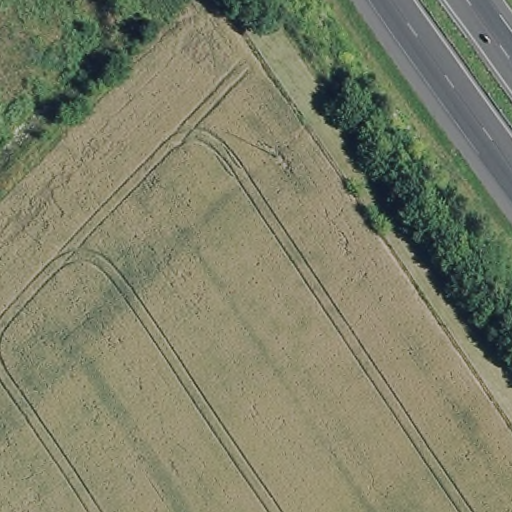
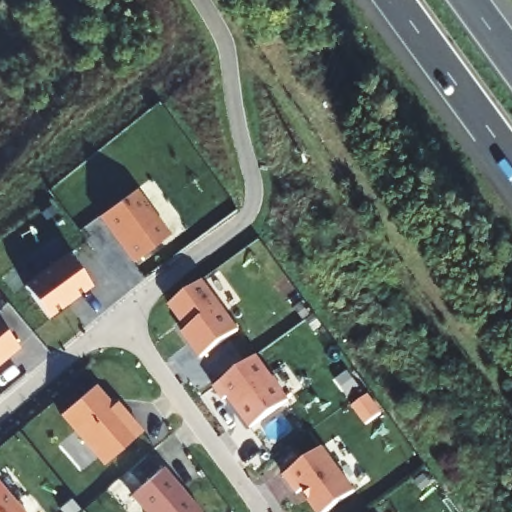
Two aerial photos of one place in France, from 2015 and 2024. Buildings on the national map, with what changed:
new [(169,234),(133,260),(101,216),(136,190),(169,234)]
new [(66,253),(89,284),(65,302),(67,305),(48,319),(23,285),(66,253)]
new [(201,356),(183,331),(188,327),(173,305),(203,281),(238,330),(201,356)]
new [(19,348),(0,364),(0,325),(19,348)]
new [(287,400),(249,427),(226,396),(222,399),(213,386),(254,355),(287,400)]
new [(113,405),(118,401),(143,431),(103,466),(59,416),(96,385),(113,405)]
new [(315,512),(306,500),(308,499),(301,490),(296,493),(282,475),(321,447),(353,491),(325,512),(315,512)]
new [(164,467),(203,512),(144,512),(131,496),(164,467)]
new [(0,512),(0,488),(21,512),(0,512)]

